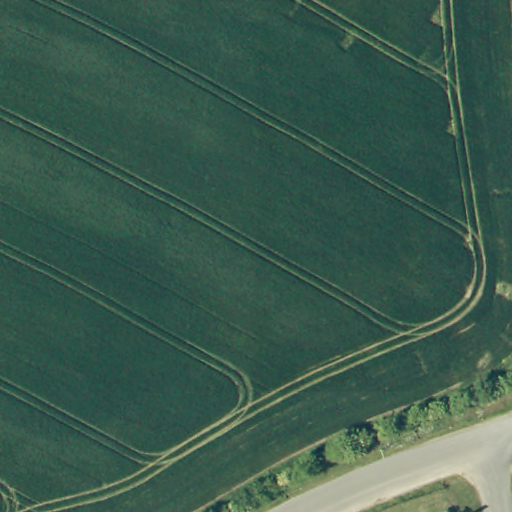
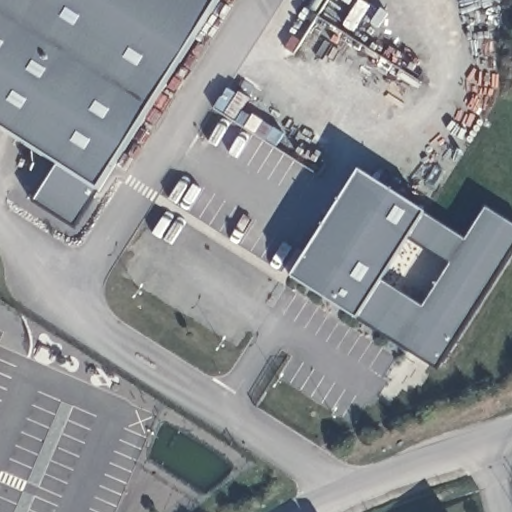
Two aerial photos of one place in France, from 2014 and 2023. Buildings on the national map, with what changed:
new [(97,189),(74,226),(32,199),(56,164),(0,128),(0,0),(215,0),(97,189)]
new [(422,213),(463,240),(485,207),(512,225),(512,251),(437,370),(290,276),(357,170),(422,213)]

